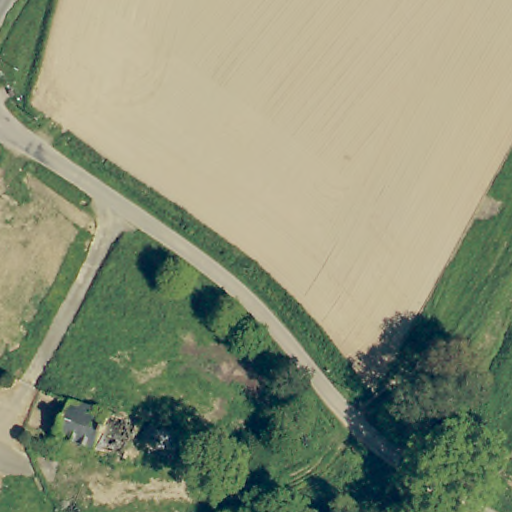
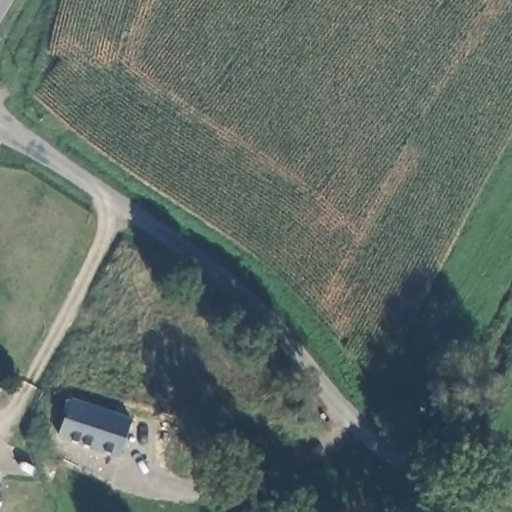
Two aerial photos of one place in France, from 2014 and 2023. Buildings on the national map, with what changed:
unchanged [(64,398),(65,394),(137,417),(122,455),(51,431),(64,398)]

